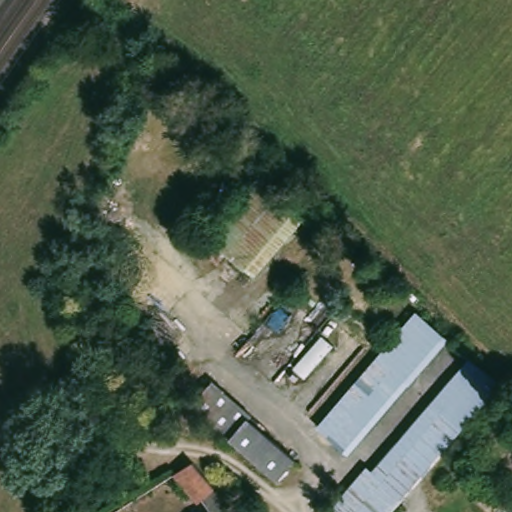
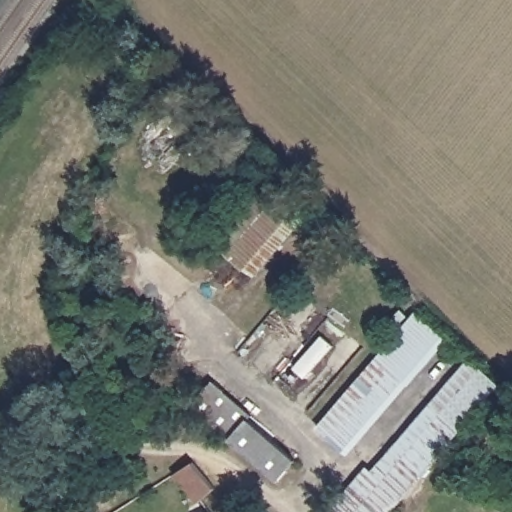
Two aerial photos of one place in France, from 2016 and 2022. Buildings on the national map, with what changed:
unchanged [(246,271),(213,243),(257,189),(292,218),(246,271)]
unchanged [(352,451),(325,427),(418,314),(445,336),(352,451)]
unchanged [(375,483),(472,366),(494,384),(478,403),(479,405),(478,405),(436,454),(424,468),(413,480),(398,498),(397,498),(385,512),(373,512),(392,491),(406,474),(392,490),(372,512),(324,512),(360,471),(375,483)]
unchanged [(252,418),(249,419),(295,459),(277,480),(191,405),(211,382),(252,418)]
unchanged [(213,491),(195,503),(171,477),(170,476),(188,464),(197,469),(210,484),(215,490),(213,491)]

